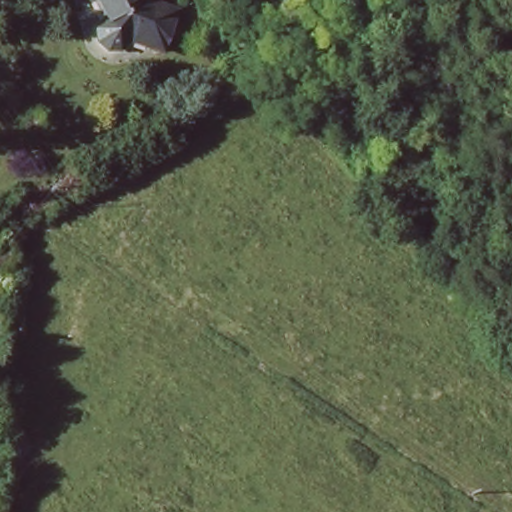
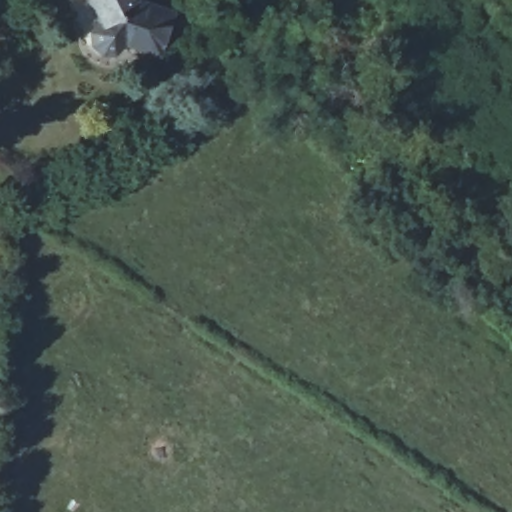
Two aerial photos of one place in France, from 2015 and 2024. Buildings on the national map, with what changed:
unchanged [(142,1),(177,13),(165,53),(130,42),(128,45),(126,48),(123,51),(119,54),(113,55),(107,55),(101,52),(98,49),(95,44),(94,39),(94,34),(95,28),(98,25),(102,21),(107,19),(99,0),(141,0),(142,1)]

